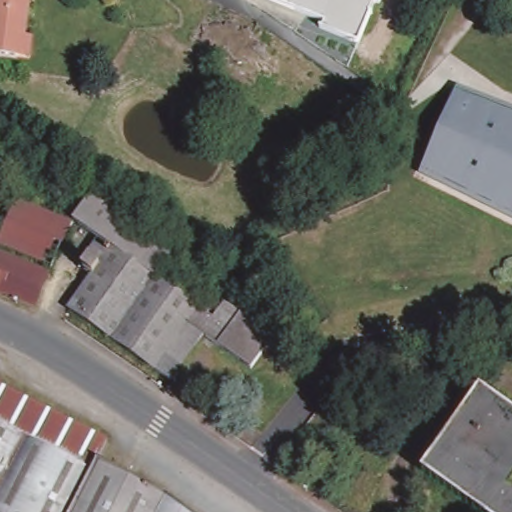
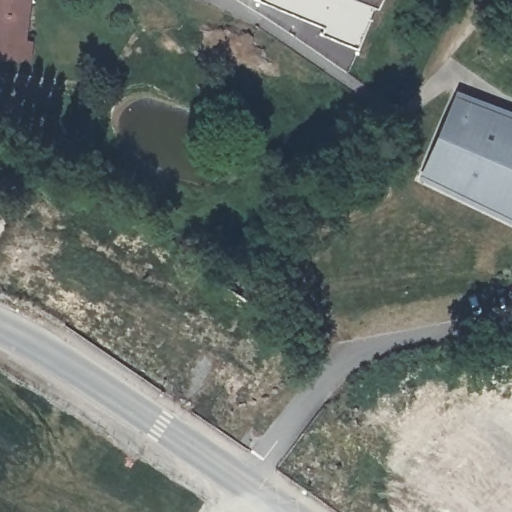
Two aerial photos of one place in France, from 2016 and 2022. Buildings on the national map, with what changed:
unchanged [(18,59),(0,57),(0,0),(31,0),(26,39),(32,39),(30,60),(18,59)]
unchanged [(361,47),(323,33),(323,25),(263,0),(362,0),(384,8),(361,47)]
unchanged [(362,0),(388,0),(384,8),(362,0)]
unchanged [(455,90),(512,112),(512,220),(420,174),(455,90)]
demolished [(71,204),(59,197),(63,190),(75,197),(71,204)]
demolished [(251,373),(203,338),(188,359),(170,384),(69,313),(92,279),(79,270),(99,242),(73,225),(90,201),(110,214),(175,255),(157,281),(197,311),(202,305),(212,312),(208,318),(213,322),(225,306),(274,340),(251,373)]
demolished [(49,277),(35,311),(0,297),(0,256),(49,277)]
demolished [(479,391),(503,408),(512,414),(512,512),(476,512),(421,473),(479,391)]
demolished [(103,455),(92,475),(160,510),(163,512),(0,512),(0,403),(103,455)]

